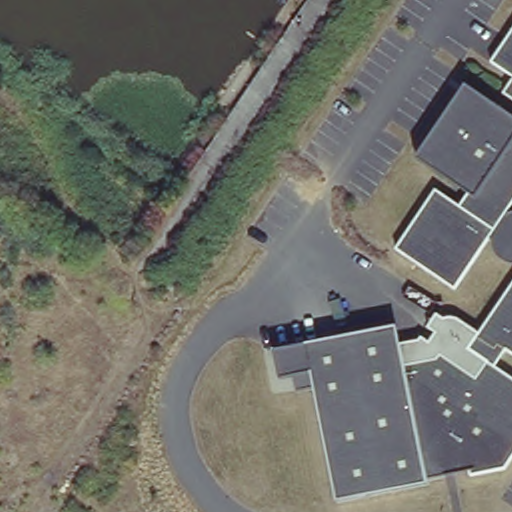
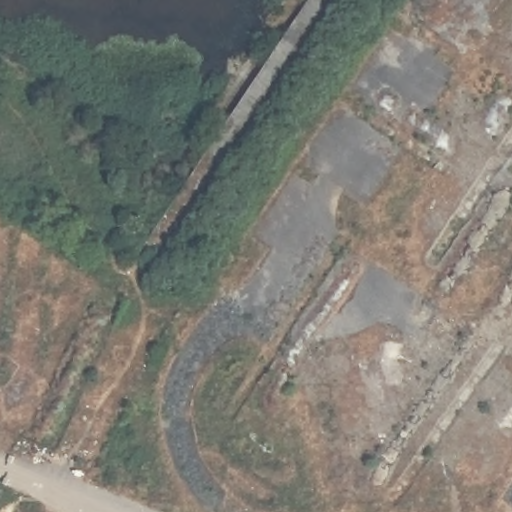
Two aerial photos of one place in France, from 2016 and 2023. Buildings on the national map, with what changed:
demolished [(511,78),(489,62),(512,29),(512,101),(501,94),(511,78)]
demolished [(493,249),(492,243),(487,240),(453,291),(393,250),(433,190),(457,206),(470,187),(418,152),(458,92),(511,127),(512,126),(512,202),(499,221),(512,230),(512,262),(501,259),(493,249)]
demolished [(442,320),(443,320),(444,320),(444,319),(445,319),(446,319),(447,319),(448,318),(449,318),(450,318),(451,319),(452,319),(453,319),(454,319),(454,320),(455,320),(456,320),(478,335),(512,285),(512,358),(504,353),(493,369),(512,381),(512,458),(503,471),(468,478),(466,474),(425,482),(426,486),(334,505),(427,344),(433,335),(425,329),(434,316),(441,321),(442,320)]
demolished [(304,356),(302,346),(394,328),(397,346),(417,342),(419,338),(427,344),(334,505),(312,392),(293,395),(291,381),(279,383),(274,362),(304,356)]

